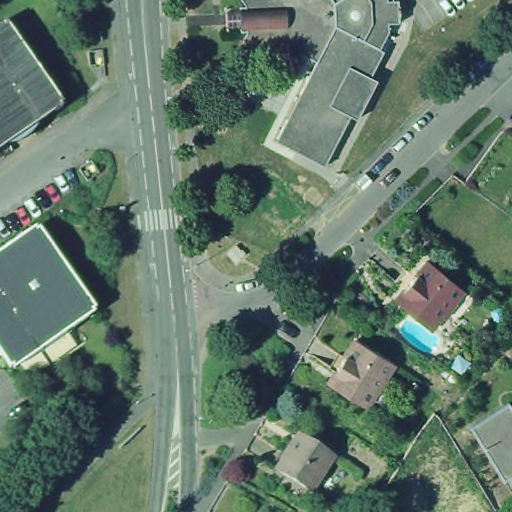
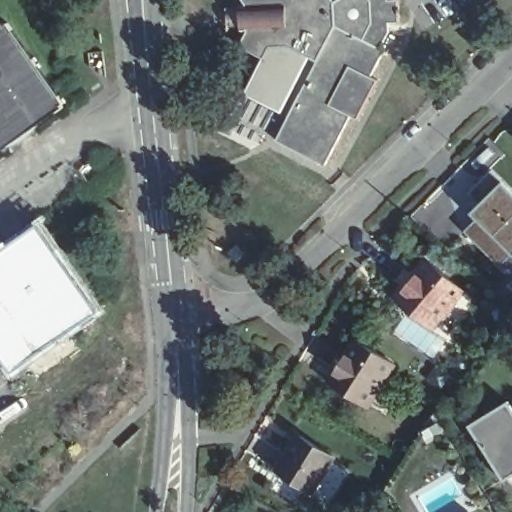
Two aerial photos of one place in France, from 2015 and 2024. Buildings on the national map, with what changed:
unchanged [(401,22),(389,22),(390,31),(381,49),(385,51),(372,76),(378,80),(357,119),(351,116),(325,166),(276,140),(317,62),(289,47),(270,47),(264,58),(240,46),(247,31),(247,27),(242,27),(242,25),(227,26),(227,11),(242,10),(242,8),(246,7),(246,5),(243,0),(399,0),(401,22)]
unchanged [(8,22),(65,102),(62,104),(64,107),(39,125),(35,129),(31,135),(21,142),(14,144),(9,145),(0,151),(0,24),(4,21),(6,24),(8,22)]
new [(469,212),(500,180),(512,192),(512,257),(500,267),(464,231),(476,219),(469,212)]
unchanged [(40,228),(96,308),(94,310),(95,312),(15,368),(14,366),(11,367),(0,352),(0,252),(36,227),(37,230),(40,228)]
unchanged [(467,290),(435,328),(407,305),(415,296),(408,290),(432,261),(467,290)]
unchanged [(356,335),(393,358),(366,402),(336,382),(342,372),(338,370),(335,367),(355,335),(356,335)]
unchanged [(503,482),(469,425),(509,401),(512,406),(512,477),(503,482)]
unchanged [(304,438),(333,456),(312,490),(296,480),(295,482),(285,476),(277,471),(300,435),(304,438)]

